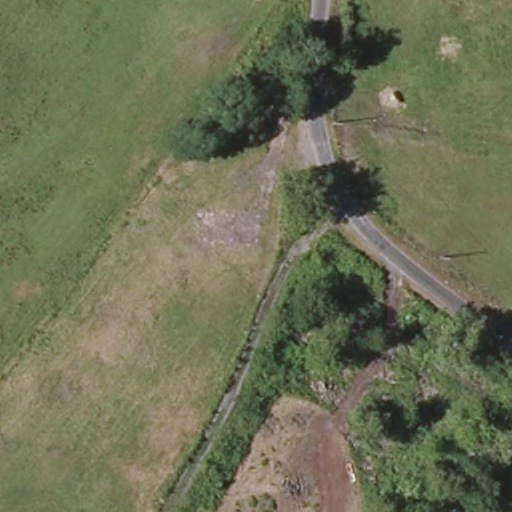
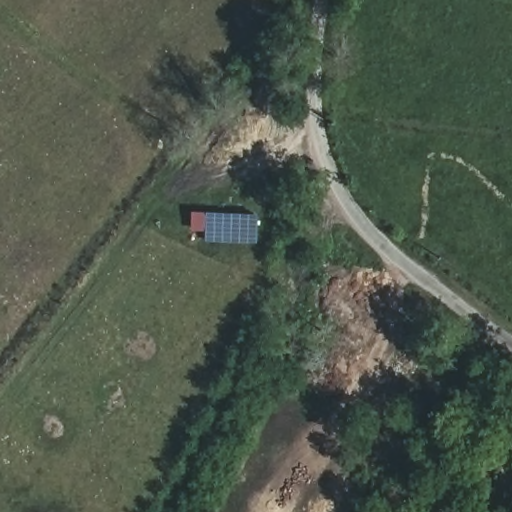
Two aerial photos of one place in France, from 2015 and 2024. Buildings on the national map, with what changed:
new [(256,244),(206,242),(206,230),(192,230),(192,213),(257,215),(256,244)]

